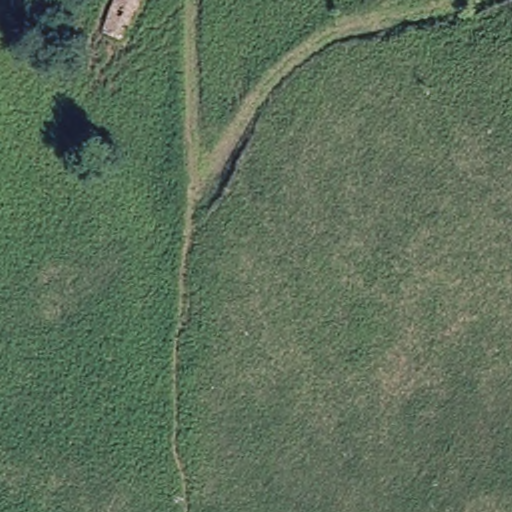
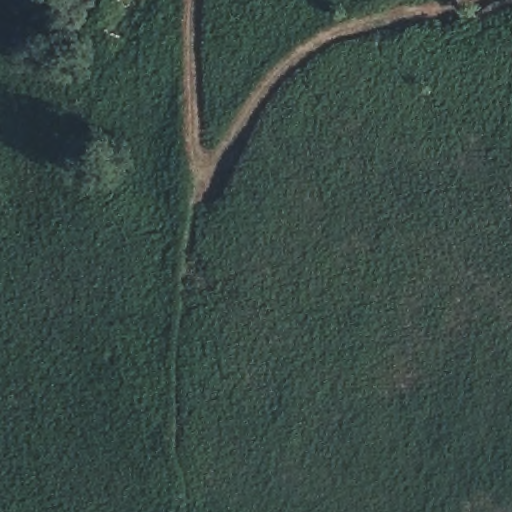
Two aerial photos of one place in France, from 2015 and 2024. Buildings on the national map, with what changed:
unchanged [(112,0),(133,0),(121,42),(99,40),(112,0)]

